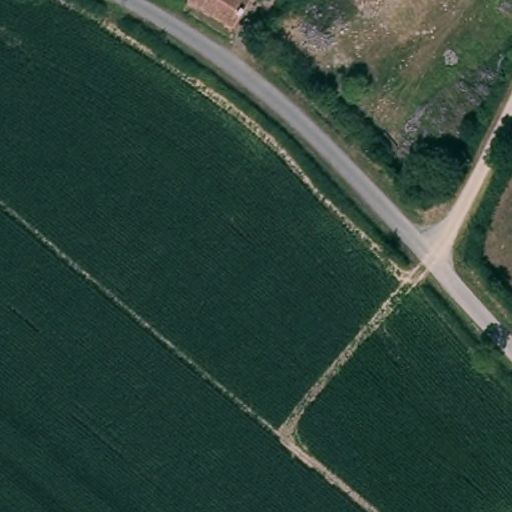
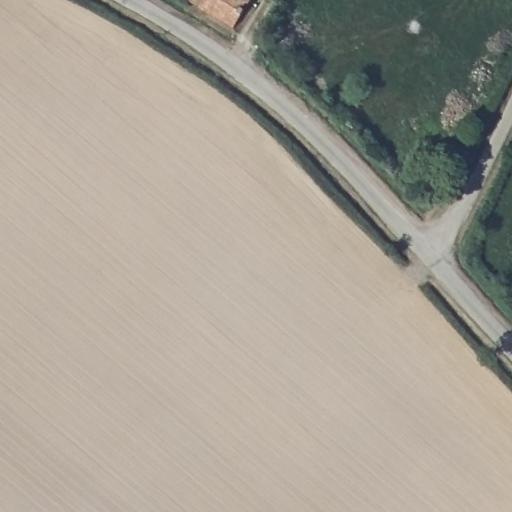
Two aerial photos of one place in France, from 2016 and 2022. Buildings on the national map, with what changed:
unchanged [(255,2),(236,30),(189,0),(251,0),(255,2)]

